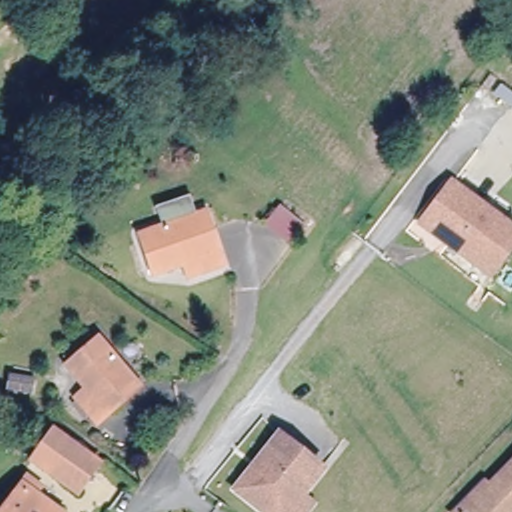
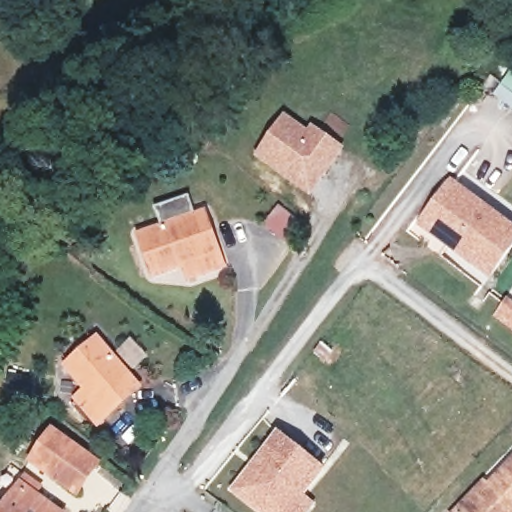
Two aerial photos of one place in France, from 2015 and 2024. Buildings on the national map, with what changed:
new [(512,72),(512,108),(494,90),(506,79),(512,72)]
new [(309,127),(313,123),(345,147),(311,195),(256,155),(287,111),(309,127)]
unchanged [(429,221),(459,180),(512,218),(482,259),(429,221)]
unchanged [(191,275),(187,261),(155,271),(142,234),(165,226),(158,206),(192,194),(199,214),(206,212),(212,229),(223,264),(191,275)]
unchanged [(309,224),(298,241),(273,223),(281,204),(309,224)]
unchanged [(512,218),(512,253),(499,271),(482,259),(512,218)]
unchanged [(126,397),(98,420),(77,396),(88,386),(69,364),(100,336),(137,379),(141,384),(126,397)]
unchanged [(30,460),(53,429),(99,462),(76,493),(49,474),(35,464),(30,460)]
unchanged [(302,512),(262,512),(232,487),(250,465),(264,448),(277,433),(319,468),(298,493),(309,502),(302,512)]
unchanged [(474,492),(477,495),(484,488),(481,485),(512,455),(512,512),(511,511),(511,512),(453,512),(474,492)]
unchanged [(35,493),(61,512),(0,512),(35,464),(49,474),(35,493)]

